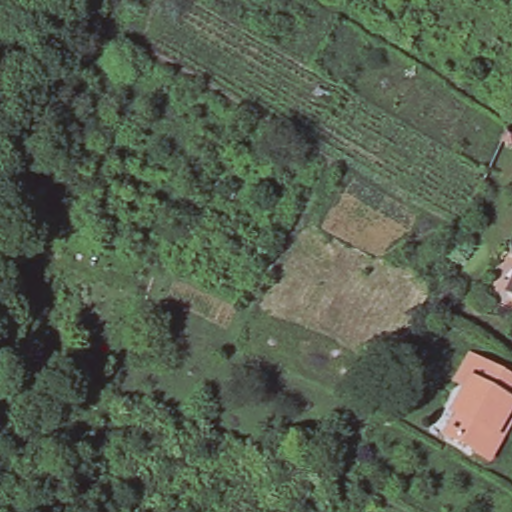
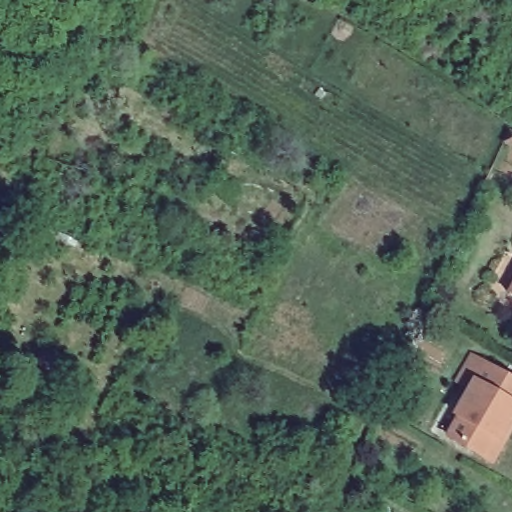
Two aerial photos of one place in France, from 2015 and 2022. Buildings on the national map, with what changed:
unchanged [(512,286),(512,300),(506,297),(512,286)]
unchanged [(508,440),(497,461),(452,438),(462,418),(458,416),(471,391),(458,384),(471,360),(485,367),(512,380),(512,421),(511,422),(512,422),(512,432),(508,440)]

